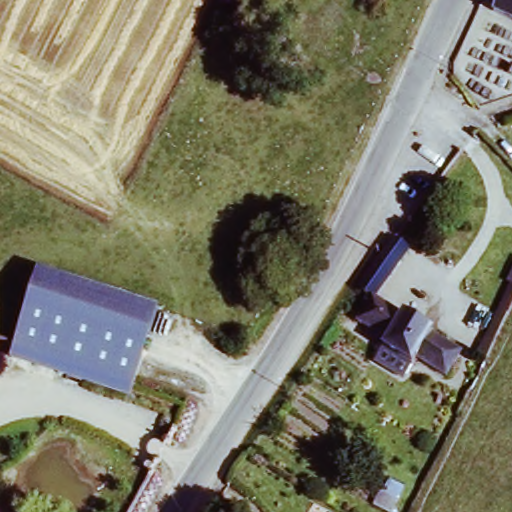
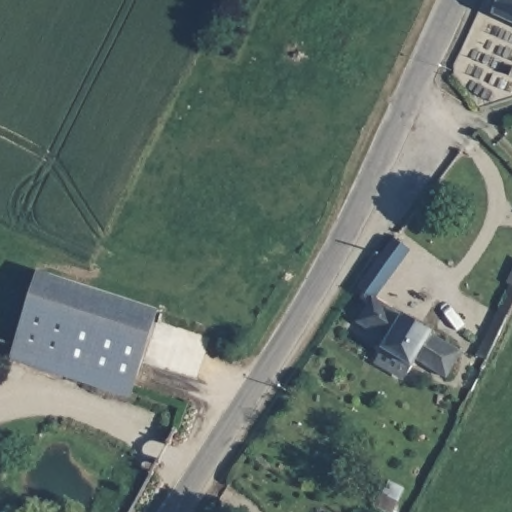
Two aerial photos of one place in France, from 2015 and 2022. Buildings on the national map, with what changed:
unchanged [(492,16),(500,0),(512,0),(512,26),(492,16)]
unchanged [(361,283),(393,241),(411,252),(383,296),(361,283)]
unchanged [(41,280),(156,315),(143,352),(129,396),(17,362),(20,352),(41,280)]
unchanged [(383,296),(468,347),(453,372),(368,321),(383,296)]
unchanged [(378,505),(391,512),(374,512),(378,505)]

